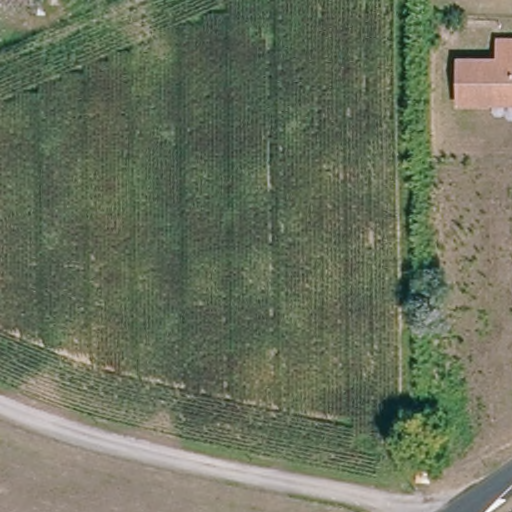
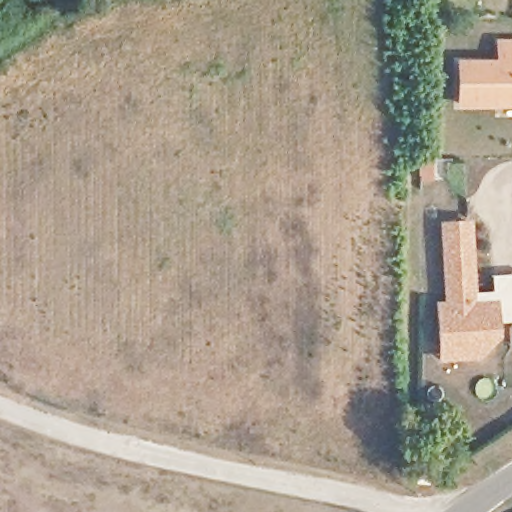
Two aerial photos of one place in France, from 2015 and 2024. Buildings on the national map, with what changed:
unchanged [(500,55),(499,36),(512,36),(512,100),(463,100),(462,55),(500,55)]
new [(501,337),(481,359),(441,361),(437,301),(445,301),(440,222),(472,220),(477,292),(492,290),(492,275),(512,274),(512,321),(500,321),(501,337)]

